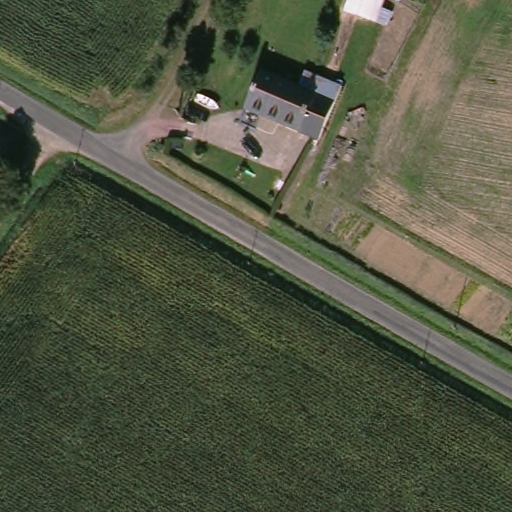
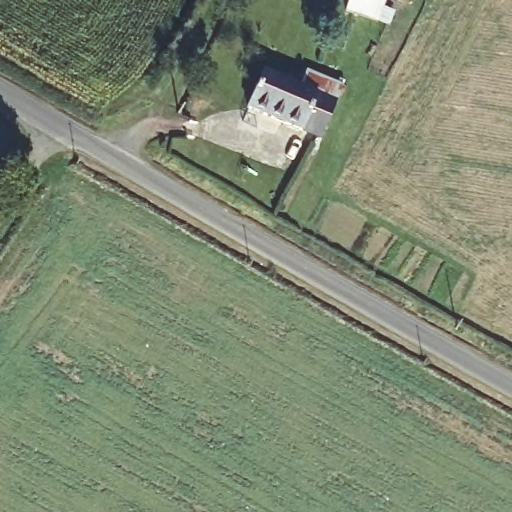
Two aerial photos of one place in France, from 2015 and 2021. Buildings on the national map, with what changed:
unchanged [(321,140),(251,108),(267,69),(338,102),(321,140)]

